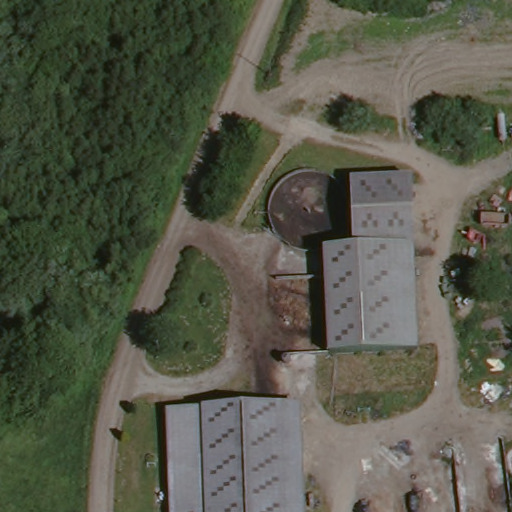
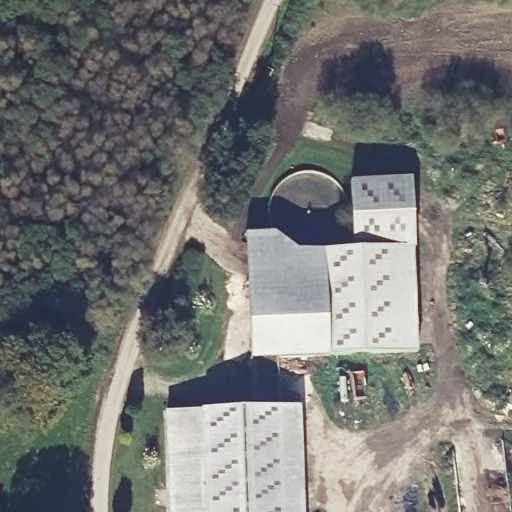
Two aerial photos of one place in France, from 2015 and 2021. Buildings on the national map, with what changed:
unchanged [(421,172),(424,350),(329,353),(325,242),(353,240),(353,175),(421,172)]
new [(329,359),(252,360),(246,234),(274,232),(299,250),(325,249),(329,353),(329,359)]
unchanged [(308,398),(311,512),(171,512),(170,405),(308,398)]

